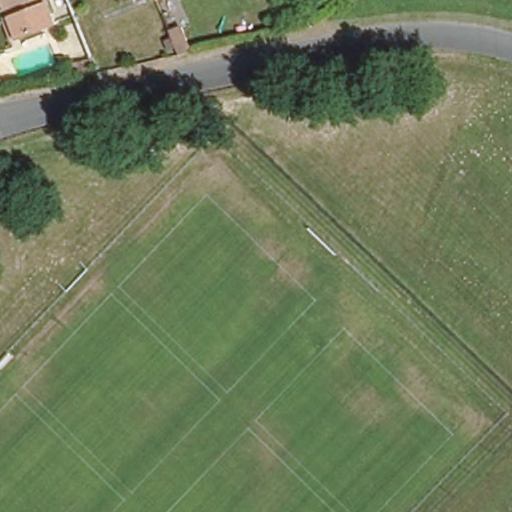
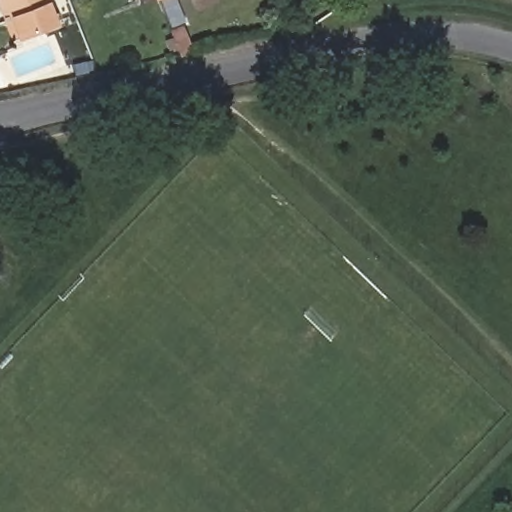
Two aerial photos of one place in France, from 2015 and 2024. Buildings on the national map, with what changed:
unchanged [(0,0),(46,0),(57,27),(20,41),(12,44),(0,11),(0,0)]
unchanged [(155,5),(153,0),(167,0),(155,5)]
unchanged [(183,28),(191,50),(180,54),(172,32),(183,28)]

